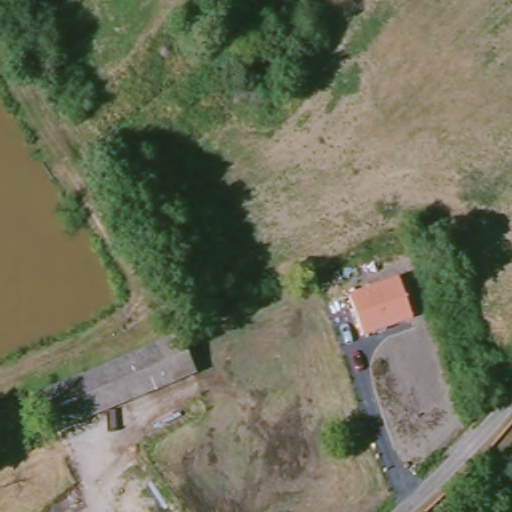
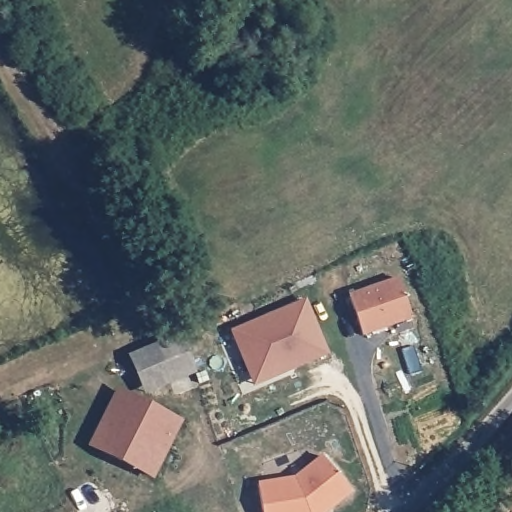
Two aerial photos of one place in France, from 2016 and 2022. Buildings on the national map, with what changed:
unchanged [(411,322),(361,340),(347,295),(398,279),(411,322)]
new [(252,387),(231,331),(306,300),(328,355),(252,387)]
new [(145,395),(128,355),(180,334),(196,375),(145,395)]
demolished [(163,345),(179,381),(40,440),(23,403),(140,354),(162,345),(163,345)]
new [(88,446),(116,388),(183,422),(154,480),(88,446)]
new [(352,495),(329,512),(264,512),(260,483),(293,478),(321,455),(352,495)]

